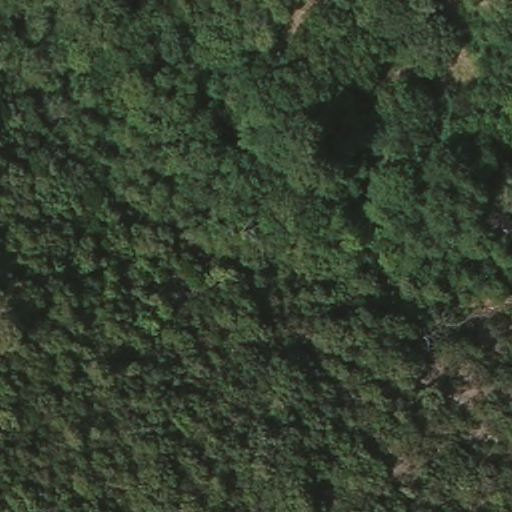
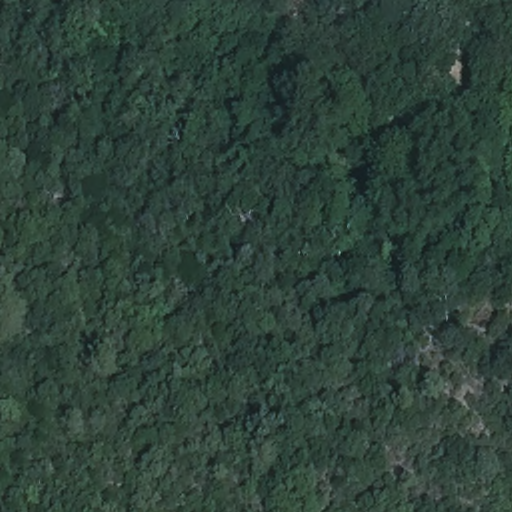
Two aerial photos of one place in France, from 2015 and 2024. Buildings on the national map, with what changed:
unchanged [(472,76),(452,75),(454,64),(475,66),(472,76)]
unchanged [(490,91),(477,87),(482,70),(493,73),(490,91)]

